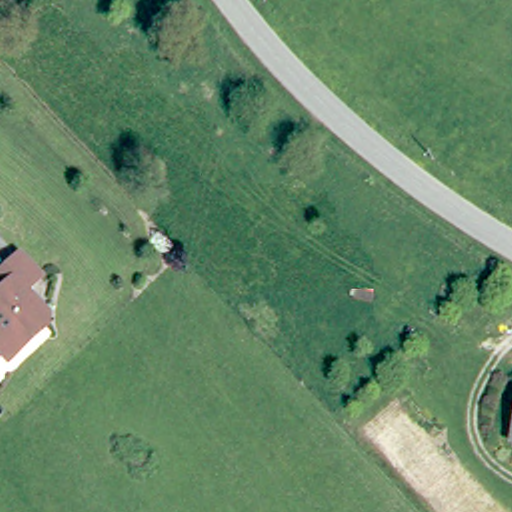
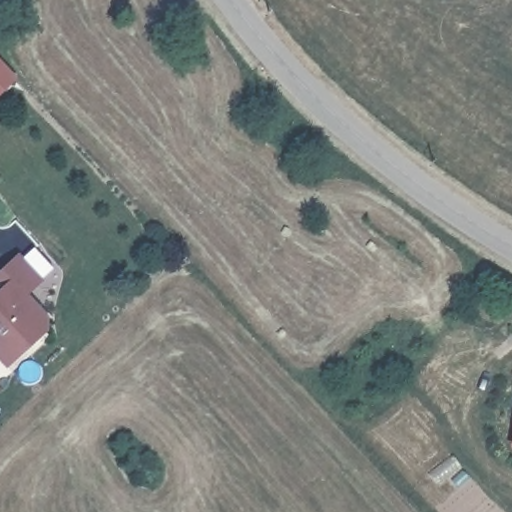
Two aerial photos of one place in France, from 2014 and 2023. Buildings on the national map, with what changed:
new [(0,96),(0,60),(18,78),(0,96)]
unchanged [(45,281),(30,295),(52,317),(49,328),(6,367),(0,361),(0,295),(6,289),(0,283),(0,277),(21,256),(45,281)]

